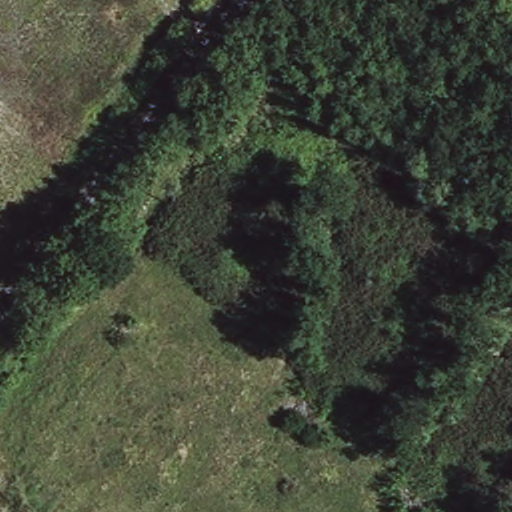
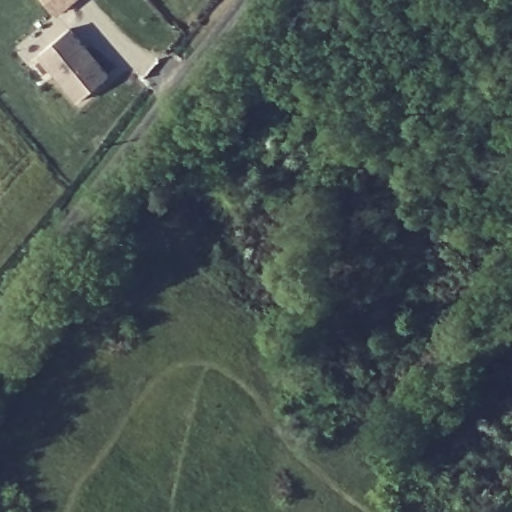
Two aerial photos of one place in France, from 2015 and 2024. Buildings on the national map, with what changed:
new [(60,15),(47,0),(77,0),(60,15)]
new [(112,74),(80,101),(41,54),(73,27),(112,74)]

